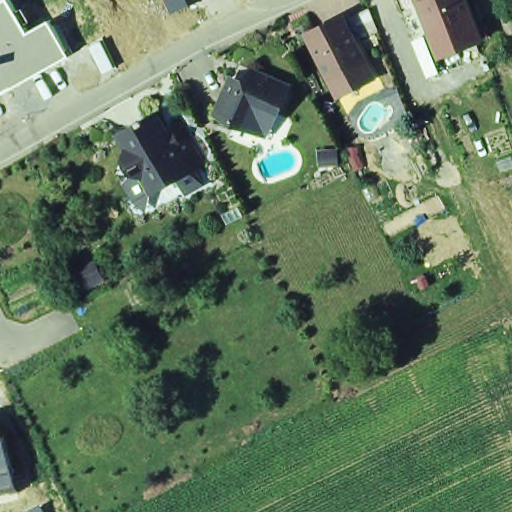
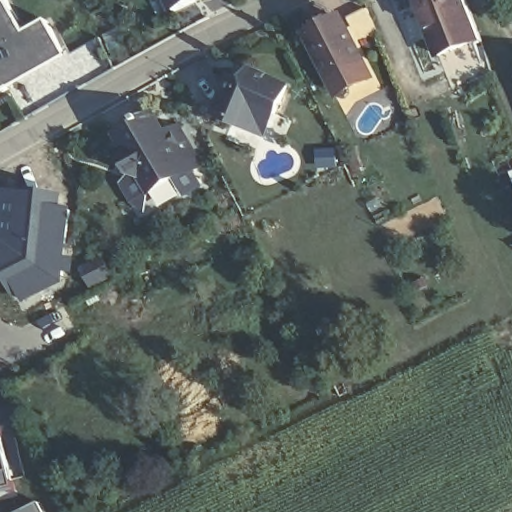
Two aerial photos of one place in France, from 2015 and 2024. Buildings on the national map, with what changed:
unchanged [(0,1),(2,0),(7,0),(26,34),(47,21),(68,58),(0,97),(0,1)]
unchanged [(171,15),(163,0),(205,0),(171,15)]
unchanged [(481,38),(437,54),(418,0),(467,0),(481,38)]
unchanged [(346,24),(366,63),(333,80),(313,41),(346,24)]
unchanged [(248,130),(214,115),(230,81),(238,66),(253,72),(287,88),(274,117),(264,137),(248,130)]
unchanged [(196,163),(153,188),(144,171),(133,169),(125,156),(129,144),(123,132),(128,129),(143,120),(141,117),(146,115),(148,118),(158,112),(170,131),(183,124),(194,145),(203,159),(196,163)]
new [(39,191),(32,261),(2,276),(0,272),(0,199),(1,190),(39,191)]
new [(32,261),(39,191),(61,193),(62,205),(69,205),(69,220),(65,244),(63,283),(18,306),(2,276),(32,261)]
new [(105,254),(116,276),(89,289),(78,267),(105,254)]
unchanged [(0,493),(0,431),(15,489),(0,493)]

